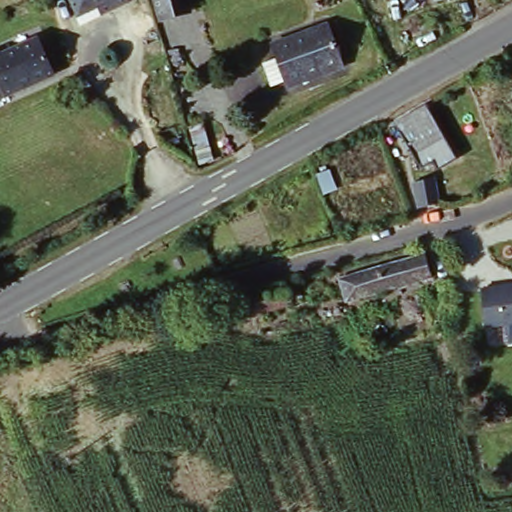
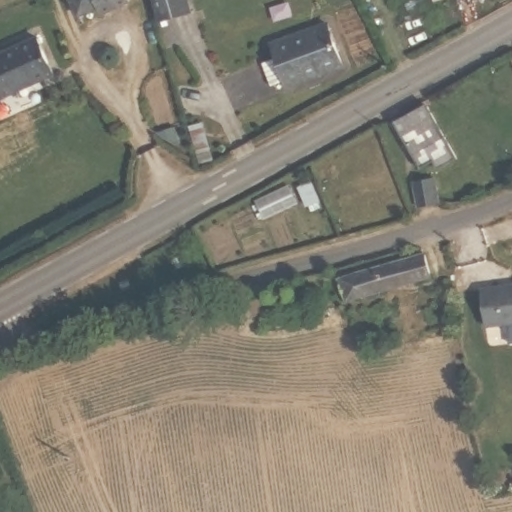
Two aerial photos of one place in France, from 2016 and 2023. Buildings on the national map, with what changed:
unchanged [(71,0),(109,0),(77,15),(71,0)]
unchanged [(163,25),(153,0),(187,0),(192,12),(163,25)]
unchanged [(433,0),(449,0),(435,4),(433,0)]
unchanged [(262,64),(278,59),(274,47),(331,27),(345,70),(288,90),(286,83),(269,89),(262,64)]
unchanged [(40,45),(55,81),(5,102),(0,104),(0,61),(40,45)]
unchanged [(427,105),(455,157),(441,166),(436,158),(419,168),(395,123),(427,105)]
unchanged [(432,181),(439,206),(420,211),(413,186),(432,181)]
unchanged [(430,257),(436,281),(398,292),(347,306),(340,284),(430,257)]
unchanged [(512,286),(512,343),(507,343),(505,325),(484,327),(481,288),(512,286)]
unchanged [(282,287),(289,310),(256,321),(240,326),(232,303),(249,298),(282,287)]

